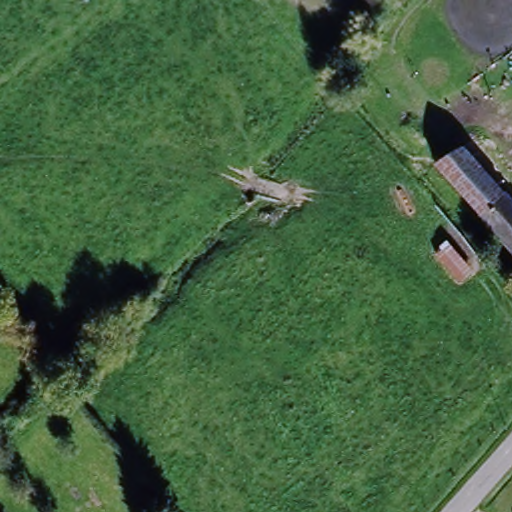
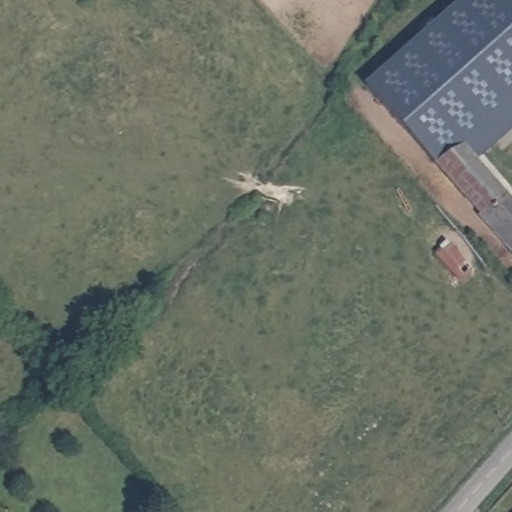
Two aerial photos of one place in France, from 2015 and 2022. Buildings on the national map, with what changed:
new [(472,165),(449,185),(362,86),(459,0),(512,0),(512,131),(472,165)]
unchanged [(479,219),(449,185),(472,165),(502,197),(479,219)]
unchanged [(486,226),(479,219),(502,197),(512,208),(512,257),(486,226)]

